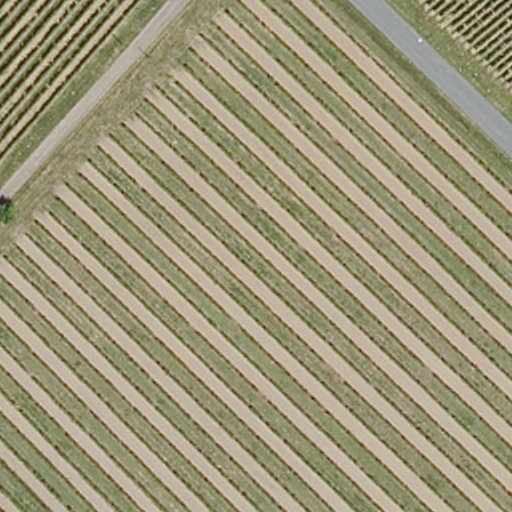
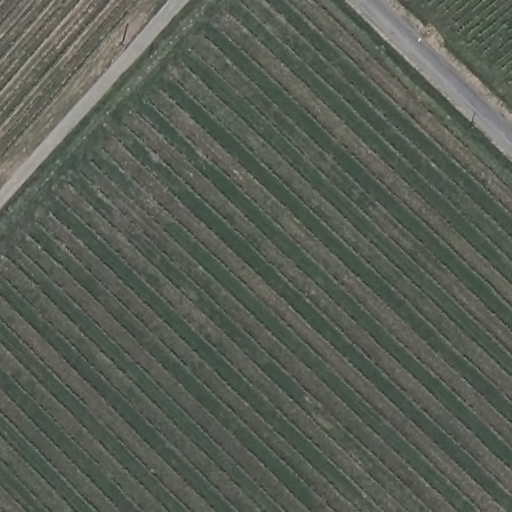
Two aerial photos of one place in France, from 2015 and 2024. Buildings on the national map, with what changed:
[]

